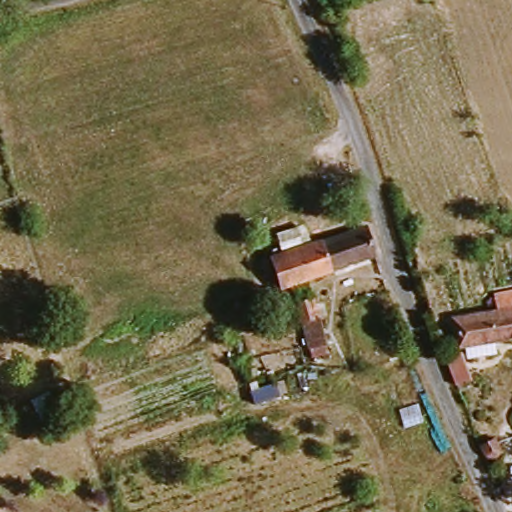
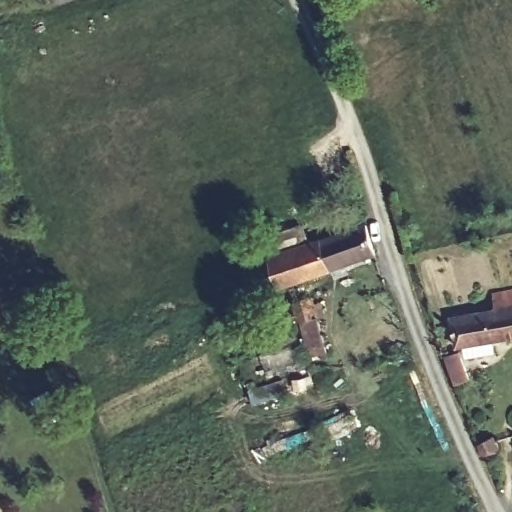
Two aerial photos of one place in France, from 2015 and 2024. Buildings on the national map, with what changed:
unchanged [(363,263),(287,286),(277,255),(365,227),(379,270),(367,275),(363,263)]
unchanged [(487,309),(485,296),(512,290),(512,342),(464,351),(457,316),(487,309)]
unchanged [(318,305),(329,342),(312,347),(302,310),(318,305)]
unchanged [(50,387),(64,415),(43,423),(30,397),(50,387)]
unchanged [(507,448),(510,456),(493,466),(475,436),(492,427),(507,448)]

